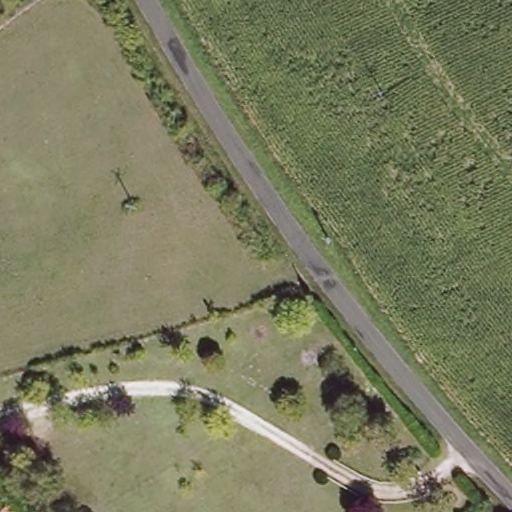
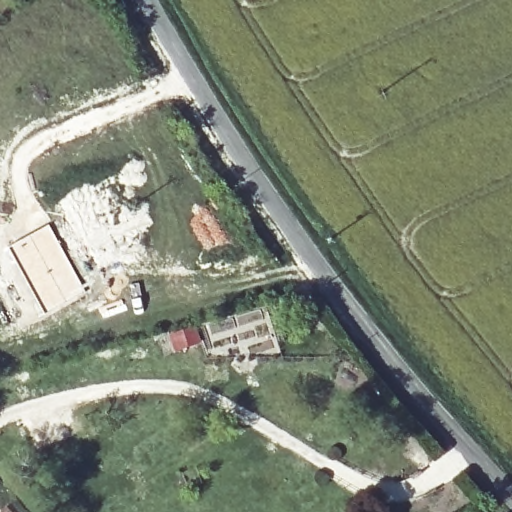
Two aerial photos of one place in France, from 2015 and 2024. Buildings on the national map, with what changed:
new [(48,222),(86,292),(47,313),(9,245),(48,222)]
unchanged [(14,508),(17,512),(10,512),(14,508)]

